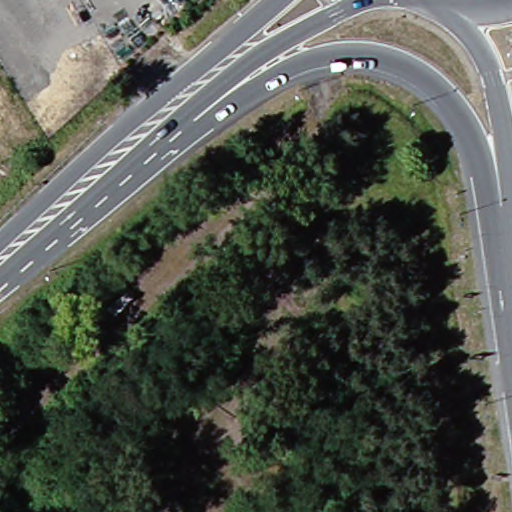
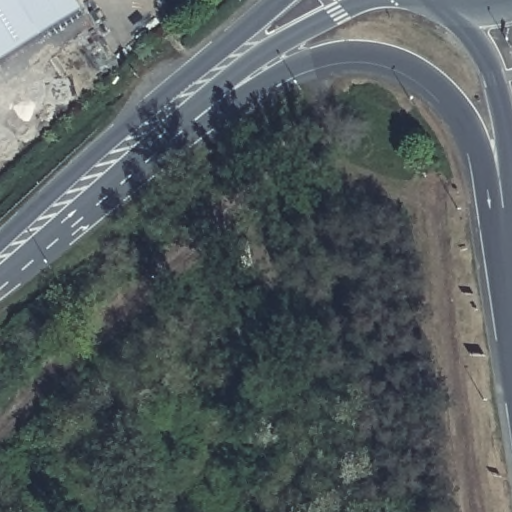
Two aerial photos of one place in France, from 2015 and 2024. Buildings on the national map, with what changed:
new [(85,9),(0,59),(0,0),(79,0),(85,9)]

